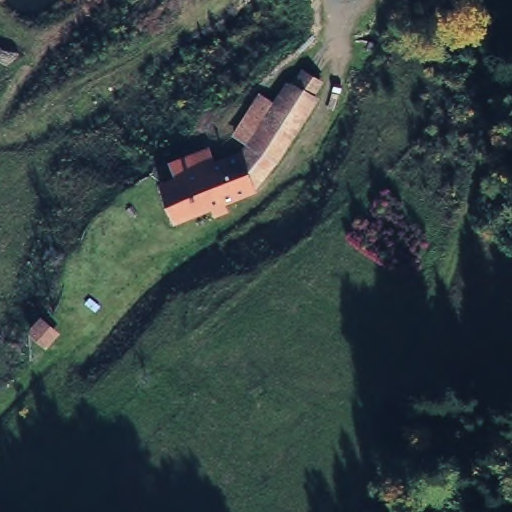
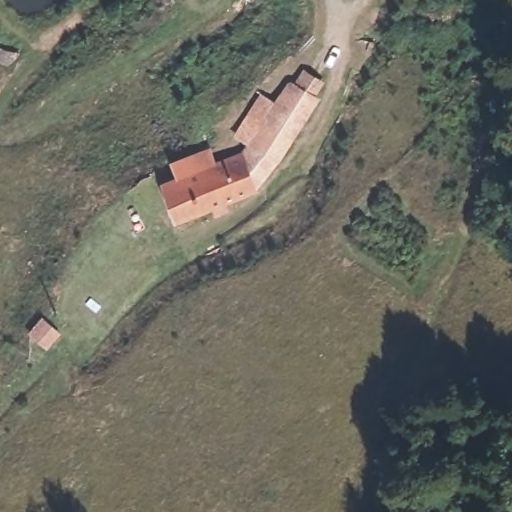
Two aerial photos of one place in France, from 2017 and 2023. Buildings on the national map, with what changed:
unchanged [(20,53),(0,48),(0,18),(27,23),(20,53)]
unchanged [(290,77),(297,63),(323,75),(278,159),(252,196),(173,220),(156,177),(171,172),(165,156),(211,144),(217,157),(238,145),(231,128),(275,64),(290,77)]

